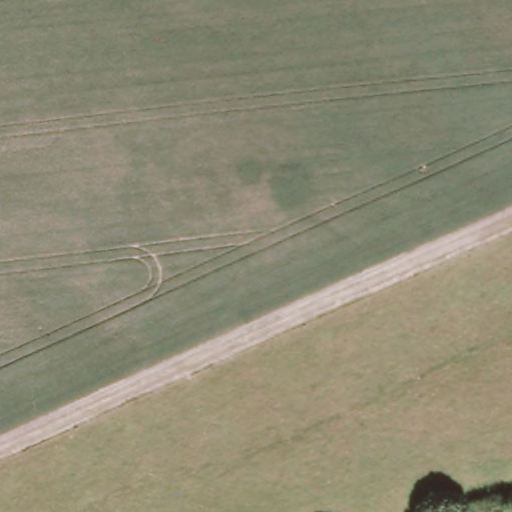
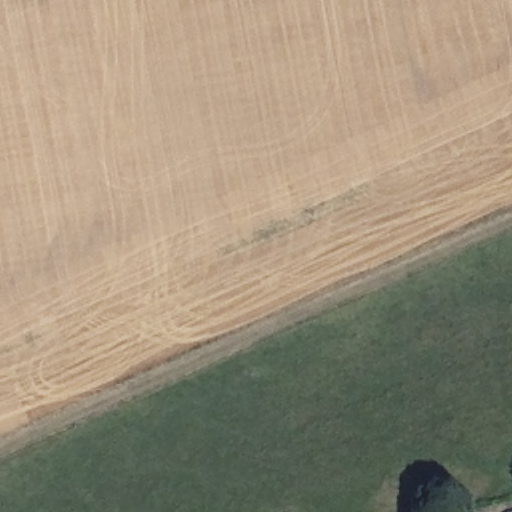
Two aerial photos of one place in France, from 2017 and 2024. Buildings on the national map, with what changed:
[]

